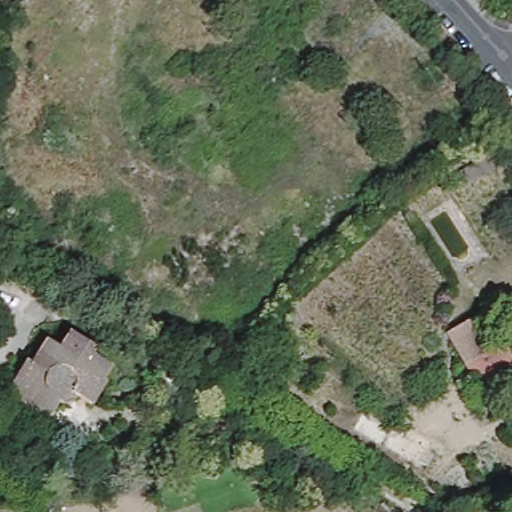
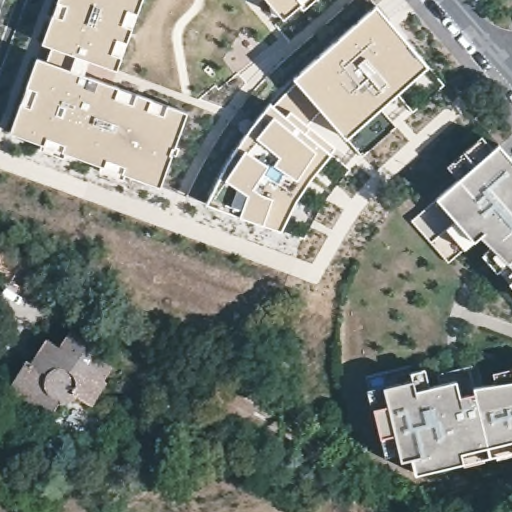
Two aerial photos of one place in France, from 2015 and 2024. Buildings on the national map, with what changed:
new [(113,88),(190,112),(161,186),(10,133),(58,0),(145,0),(113,88)]
new [(285,17),(270,0),(304,0),(285,17)]
new [(429,66),(348,136),(310,177),(280,227),(208,200),(246,133),(280,93),(304,70),(378,6),(429,66)]
new [(512,266),(484,236),(473,242),(461,253),(440,230),(451,218),(432,198),(495,144),(512,163),(512,266)]
new [(49,279),(40,297),(0,273),(0,249),(49,279)]
new [(512,280),(512,289),(507,284),(512,280)]
demolished [(503,341),(464,362),(448,332),(487,311),(503,341)]
unchanged [(26,354),(30,356),(46,332),(60,340),(70,325),(97,342),(95,348),(113,360),(105,374),(108,377),(93,400),(79,392),(58,400),(38,431),(10,413),(21,393),(8,384),(26,354)]
demolished [(491,357),(507,348),(512,345),(512,373),(502,379),(491,357)]
new [(403,454),(395,456),(391,435),(374,438),(368,407),(382,403),(379,389),(408,381),(410,390),(453,380),(456,398),(471,396),(470,389),(512,382),(512,449),(407,472),(403,454)]

